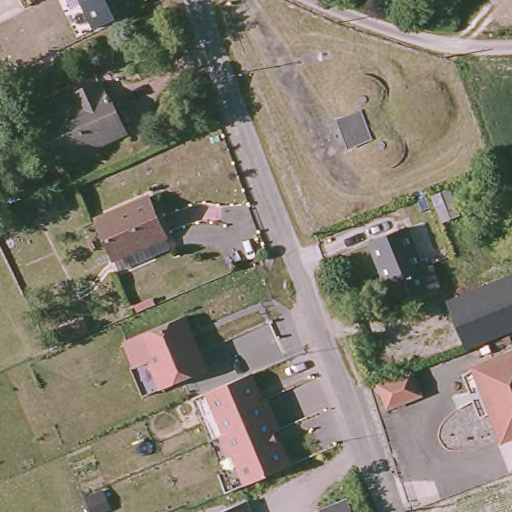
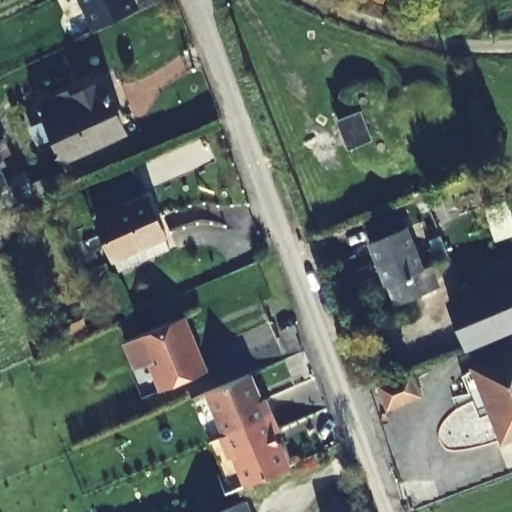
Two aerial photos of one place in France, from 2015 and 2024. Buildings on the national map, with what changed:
unchanged [(93,30),(79,0),(136,0),(139,9),(93,30)]
unchanged [(44,118),(43,118),(36,103),(66,89),(69,94),(99,81),(105,94),(107,94),(110,100),(108,101),(121,133),(63,160),(44,118)]
unchanged [(447,188),(458,215),(442,221),(432,194),(447,188)]
unchanged [(149,257),(119,270),(96,220),(146,197),(163,234),(170,248),(149,257)]
unchanged [(439,285),(396,301),(389,282),(388,282),(371,242),(407,227),(423,269),(431,265),(439,285)]
unchanged [(512,269),(512,332),(468,350),(444,291),(510,265),(512,269)]
unchanged [(128,366),(132,362),(123,339),(186,315),(206,368),(159,389),(142,397),(128,366)]
unchanged [(504,439),(502,432),(496,430),(489,414),(492,409),(475,367),(512,351),(512,436),(504,439)]
unchanged [(193,401),(208,393),(251,372),(263,399),(268,397),(281,429),(276,431),(291,463),(244,485),(233,492),(193,401)]
unchanged [(388,409),(378,386),(411,373),(420,396),(388,409)]
unchanged [(319,509),(348,497),(353,512),(321,512),(319,509)]
unchanged [(246,500),(251,512),(217,512),(246,500)]

